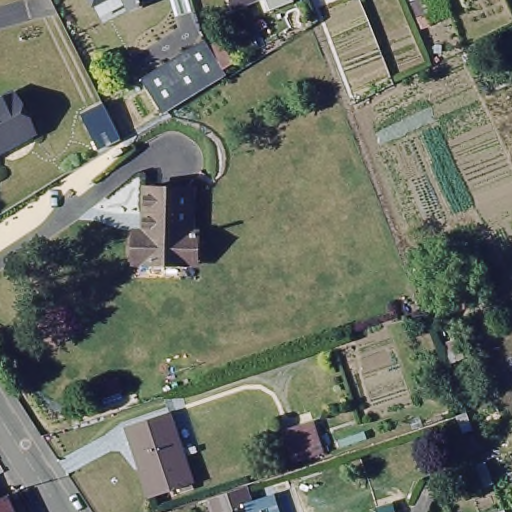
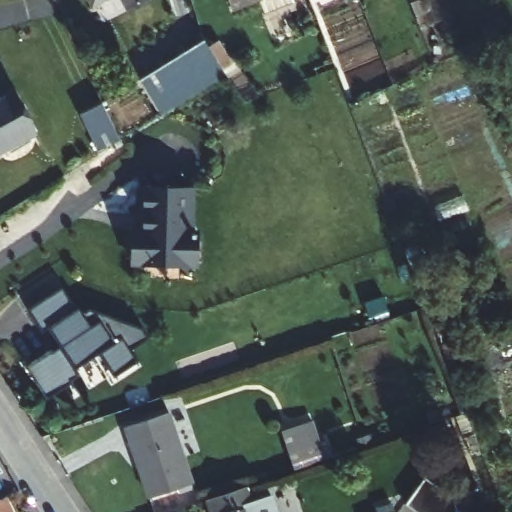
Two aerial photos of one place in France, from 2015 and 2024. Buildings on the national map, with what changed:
unchanged [(92,7),(88,0),(105,0),(92,7)]
unchanged [(127,12),(121,0),(150,0),(127,12)]
unchanged [(232,9),(229,0),(255,0),(232,9)]
unchanged [(229,70),(164,111),(144,79),(207,38),(229,70)]
unchanged [(0,103),(15,95),(37,134),(5,153),(0,155),(0,103)]
unchanged [(121,140),(98,150),(80,114),(102,103),(121,140)]
unchanged [(197,264),(132,261),(133,229),(149,230),(150,211),(144,211),(145,187),(187,188),(195,188),(193,231),(198,231),(197,264)]
new [(53,326),(33,308),(62,292),(75,309),(87,317),(92,310),(140,341),(120,376),(102,353),(77,368),(81,376),(47,396),(30,367),(63,346),(53,326)]
unchanged [(149,502),(138,473),(140,473),(131,446),(128,447),(122,431),(166,414),(193,486),(149,502)]
unchanged [(276,433),(310,419),(322,454),(288,465),(276,433)]
unchanged [(210,502),(221,498),(253,485),(262,508),(263,512),(202,512),(200,506),(210,502)]
unchanged [(11,512),(0,512),(0,500),(5,498),(11,512)]

